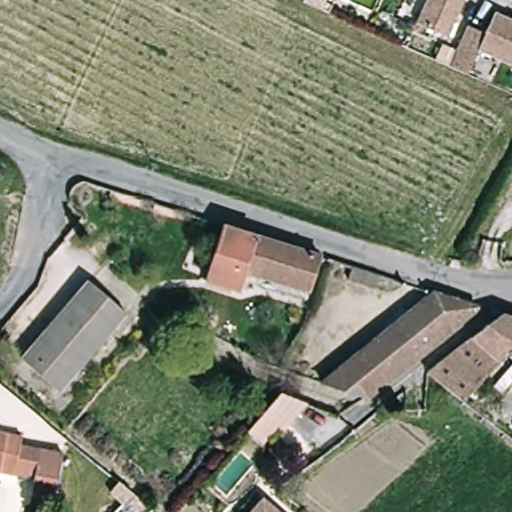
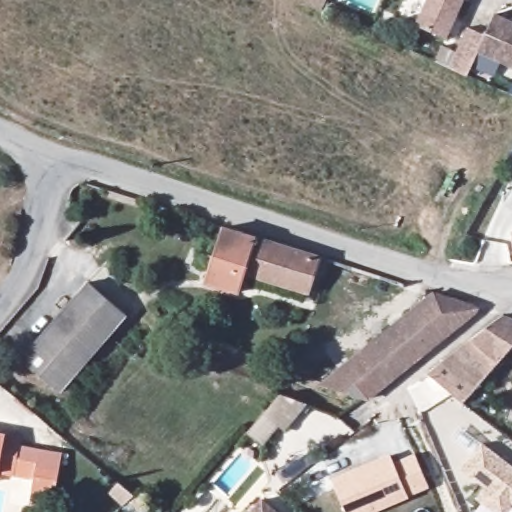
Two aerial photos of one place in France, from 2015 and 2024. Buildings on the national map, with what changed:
unchanged [(414,26),(425,0),(461,0),(446,39),(414,26)]
unchanged [(469,72),(449,64),(464,24),(483,31),(491,10),(512,19),(512,62),(479,48),(469,72)]
unchanged [(246,268),(241,287),(206,276),(221,224),(319,253),(309,287),(246,268)]
unchanged [(63,394),(58,390),(25,364),(71,309),(88,289),(120,315),(125,319),(63,394)]
unchanged [(370,399),(348,393),(323,387),(431,292),(477,307),(370,399)]
unchanged [(506,349),(494,363),(468,338),(496,315),(512,321),(512,354),(506,349)]
new [(494,363),(462,404),(441,387),(425,371),(457,345),(468,338),(494,363)]
demolished [(441,387),(425,371),(457,345),(468,358),(441,387)]
unchanged [(282,431),(276,426),(258,444),(243,432),(278,395),(309,403),(282,431)]
unchanged [(8,480),(0,479),(0,443),(14,445),(8,480)]
new [(483,443),(512,466),(512,509),(511,508),(508,512),(493,512),(476,498),(484,487),(462,468),(483,443)]
new [(394,462),(415,454),(430,489),(409,498),(379,512),(346,512),(332,478),(391,453),(394,462)]
unchanged [(33,457),(55,462),(48,505),(24,500),(33,457)]
unchanged [(261,499),(275,512),(250,512),(261,499)]

